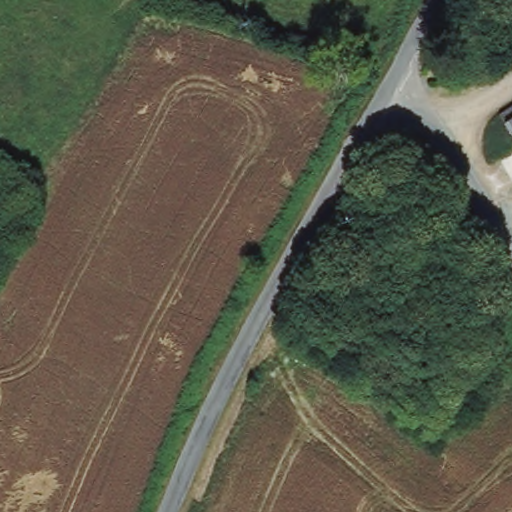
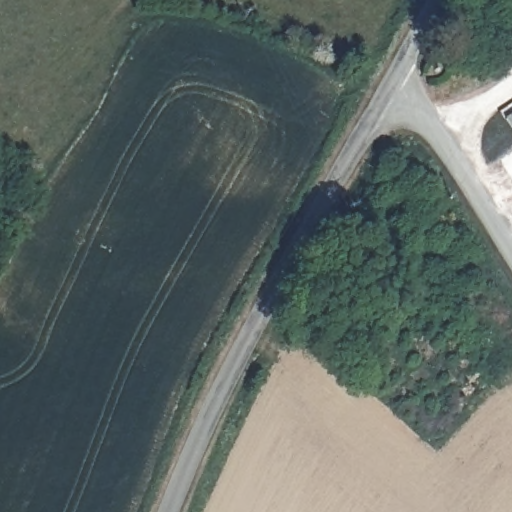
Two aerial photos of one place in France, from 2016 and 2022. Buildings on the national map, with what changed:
unchanged [(512,115),(512,146),(498,125),(512,115)]

